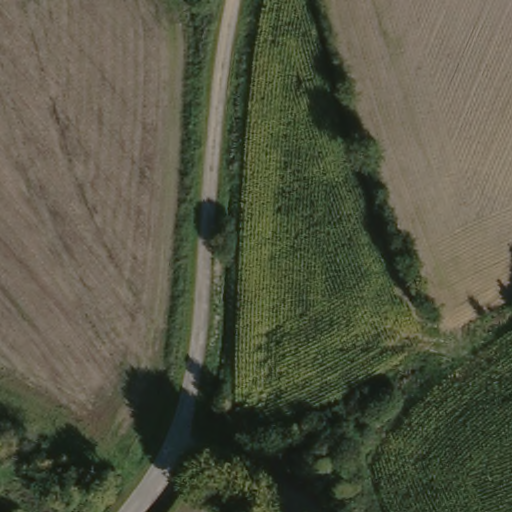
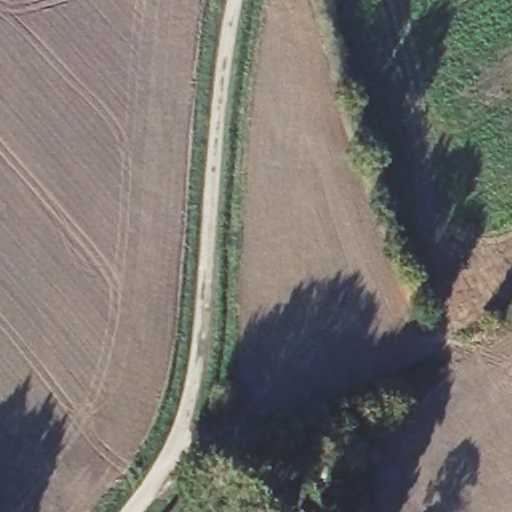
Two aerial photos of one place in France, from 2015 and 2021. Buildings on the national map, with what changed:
unchanged [(354,489),(327,507),(307,478),(334,460),(354,489)]

